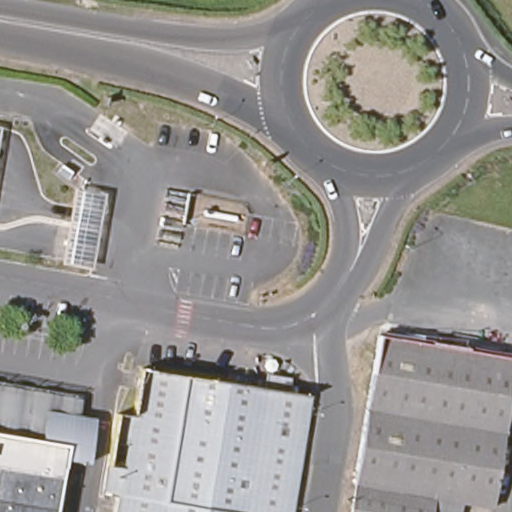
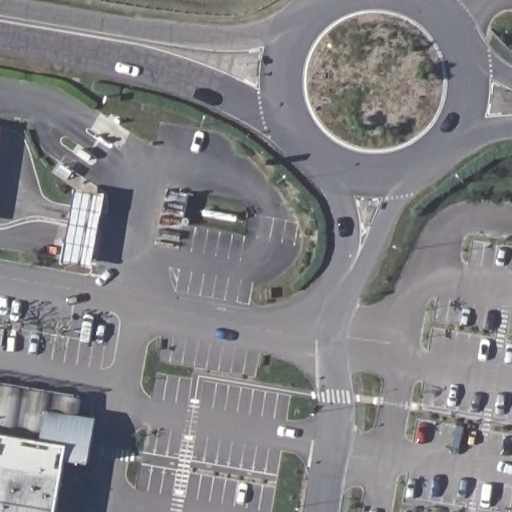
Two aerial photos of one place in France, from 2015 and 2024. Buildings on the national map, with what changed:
unchanged [(5,129),(0,152),(0,128),(5,129)]
unchanged [(108,196),(94,270),(66,266),(80,190),(108,196)]
demolished [(512,407),(494,510),(467,506),(435,500),(434,512),(354,512),(384,341),(512,363),(512,407)]
demolished [(128,493),(110,490),(114,465),(130,467),(131,462),(122,460),(125,441),(119,440),(123,413),(140,417),(147,370),(313,396),(293,512),(125,512),(128,493)]
unchanged [(35,397),(32,412),(51,415),(52,412),(101,420),(95,464),(71,460),(62,512),(0,512),(0,391),(35,397)]

